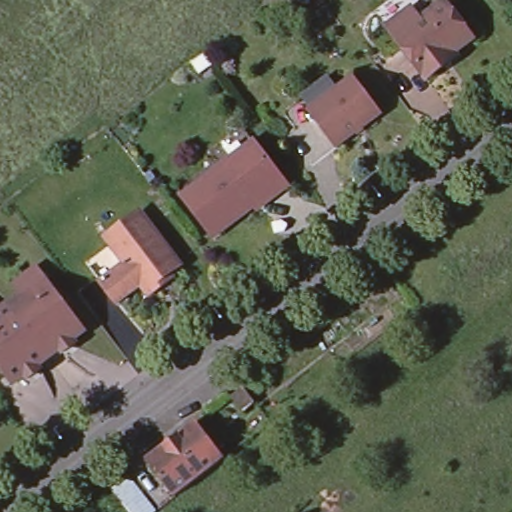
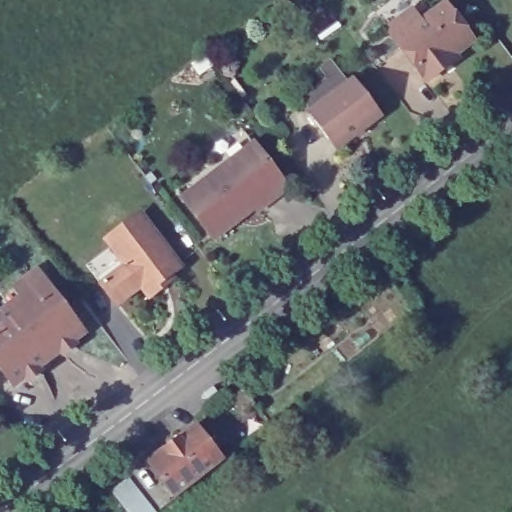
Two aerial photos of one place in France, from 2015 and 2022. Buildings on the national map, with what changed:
unchanged [(473,41),(454,54),(457,59),(426,81),(396,40),(387,28),(412,9),(421,22),(445,4),(473,41)]
unchanged [(352,79),(381,116),(336,149),(307,112),(352,79)]
unchanged [(258,202),(217,234),(186,194),(258,138),(291,183),(276,195),(261,207),(258,202)]
unchanged [(109,237),(104,229),(139,203),(179,258),(169,264),(173,269),(148,288),(141,277),(116,295),(99,273),(86,254),(109,237)]
unchanged [(24,372),(13,381),(0,364),(0,308),(8,302),(20,292),(13,283),(37,264),(44,274),(84,327),(71,336),(75,340),(63,350),(59,346),(48,354),(36,363),(39,368),(28,376),(24,372)]
unchanged [(243,386),(256,404),(243,413),(229,396),(243,386)]
unchanged [(196,424),(223,459),(175,497),(164,483),(146,498),(128,475),(148,461),(196,424)]

